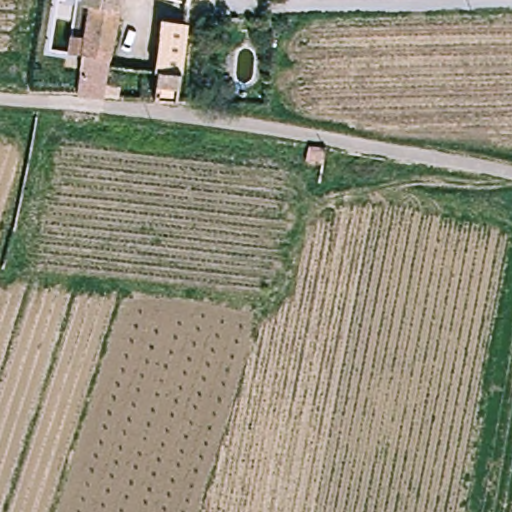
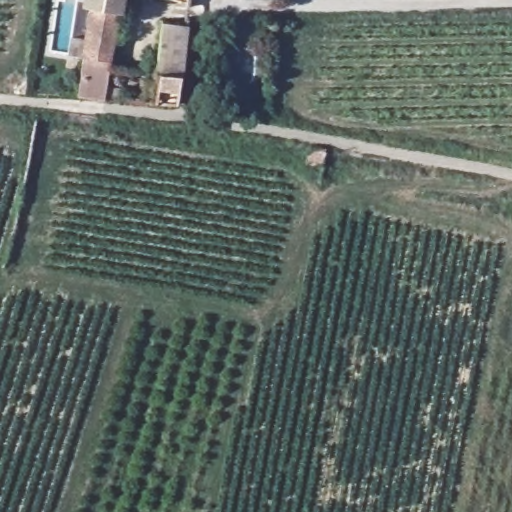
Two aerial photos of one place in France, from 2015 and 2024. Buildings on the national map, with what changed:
unchanged [(92,4),(86,3),(87,0),(123,0),(121,9),(92,4)]
unchanged [(121,9),(112,59),(84,55),(92,4),(121,9)]
unchanged [(161,23),(194,26),(182,103),(151,100),(161,23)]
unchanged [(78,93),(84,55),(112,59),(105,96),(78,93)]

